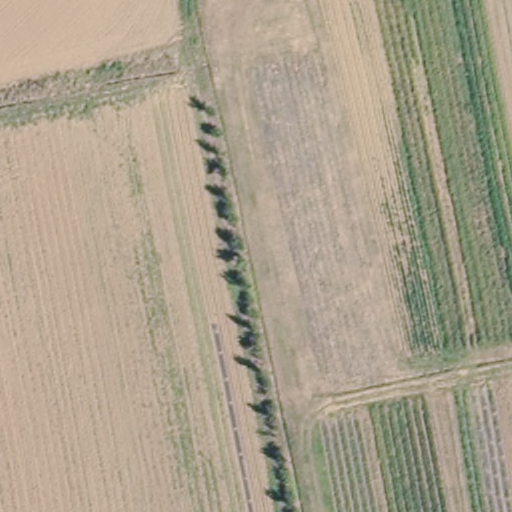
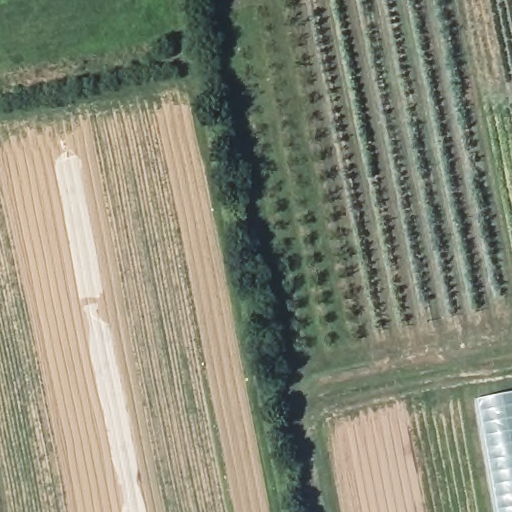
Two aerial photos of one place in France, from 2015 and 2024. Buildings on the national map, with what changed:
new [(512,394),(512,512),(496,512),(476,400),(512,394)]

